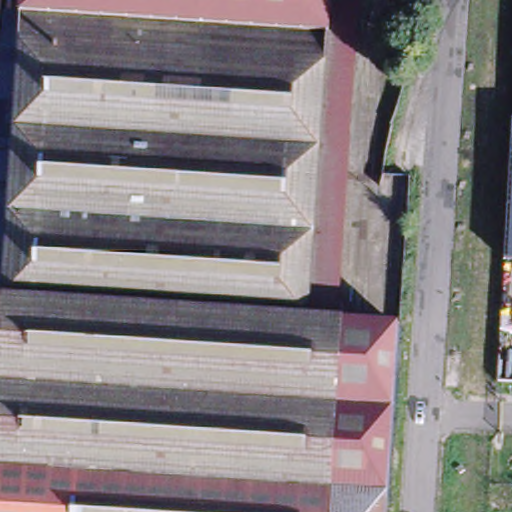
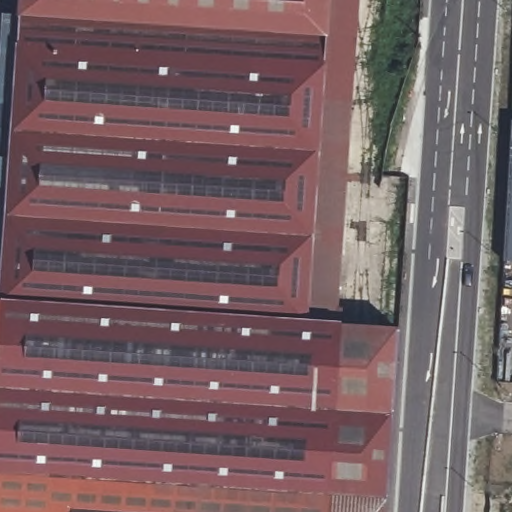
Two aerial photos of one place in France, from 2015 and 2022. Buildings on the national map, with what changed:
unchanged [(17,12),(17,0),(361,0),(339,320),(400,326),(387,512),(0,512),(0,19),(0,13),(17,12)]
unchanged [(505,261),(512,130),(512,262),(505,261)]

